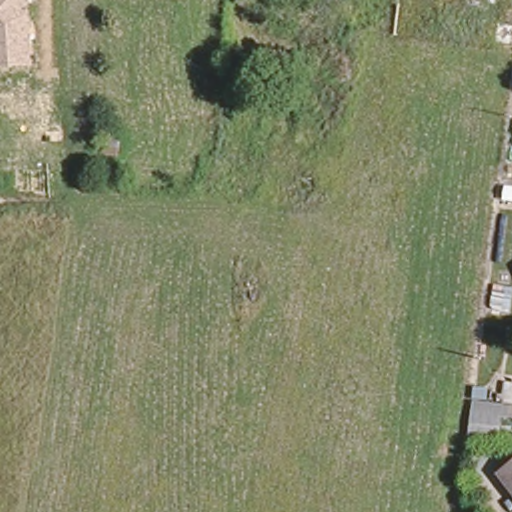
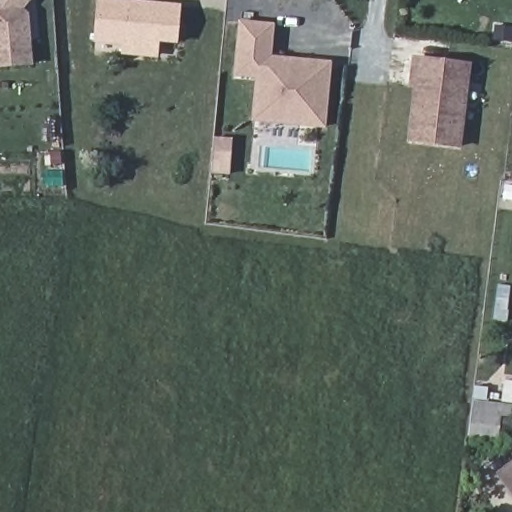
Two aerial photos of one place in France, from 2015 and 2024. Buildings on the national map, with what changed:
unchanged [(30,15),(34,65),(0,68),(0,0),(32,0),(25,10),(30,15)]
new [(178,44),(160,42),(158,59),(120,55),(121,45),(93,42),(97,0),(136,0),(181,4),(178,44)]
new [(275,24),(272,55),(332,61),(325,129),(251,121),(255,79),(233,77),(239,20),(275,24)]
new [(414,87),(408,86),(413,55),(472,62),(461,147),(407,142),(414,87)]
new [(216,137),(231,138),(230,152),(229,173),(214,172),(215,151),(216,137)]
unchanged [(490,388),(488,400),(502,402),(505,377),(512,379),(512,421),(502,420),(499,440),(468,437),(472,386),(490,388)]
unchanged [(499,471),(512,462),(512,486),(499,471)]

